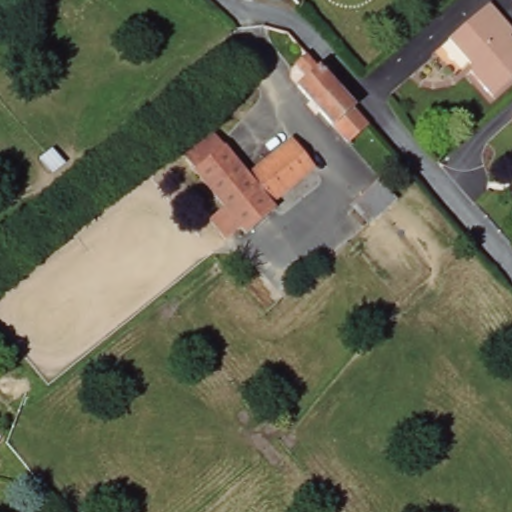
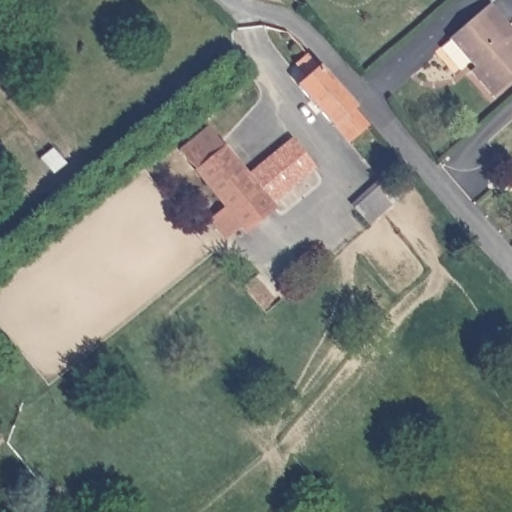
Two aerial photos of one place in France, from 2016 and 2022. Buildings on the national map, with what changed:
unchanged [(512,28),(512,32),(509,35),(512,38),(512,78),(493,95),(470,69),(474,66),(449,37),(490,2),(512,28)]
unchanged [(300,89),(309,80),(298,68),(309,57),(320,71),(342,96),(369,127),(351,146),(300,89)]
unchanged [(235,225),(215,242),(201,224),(220,207),(189,170),(223,142),(249,174),(292,138),(314,165),(271,200),(274,206),(270,209),(241,232),(237,228),(235,225)]
unchanged [(365,196),(383,181),(396,199),(366,225),(363,227),(348,210),(350,208),(365,196)]

